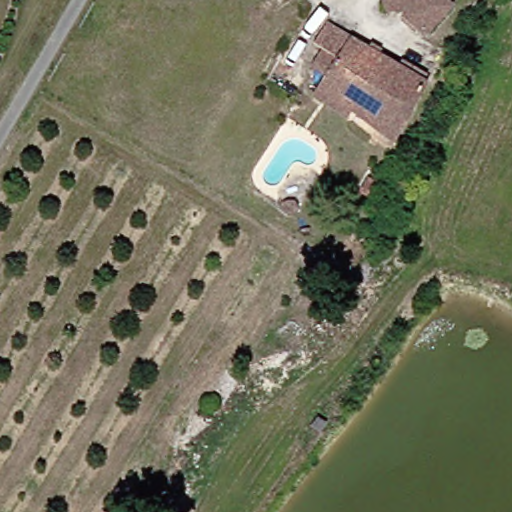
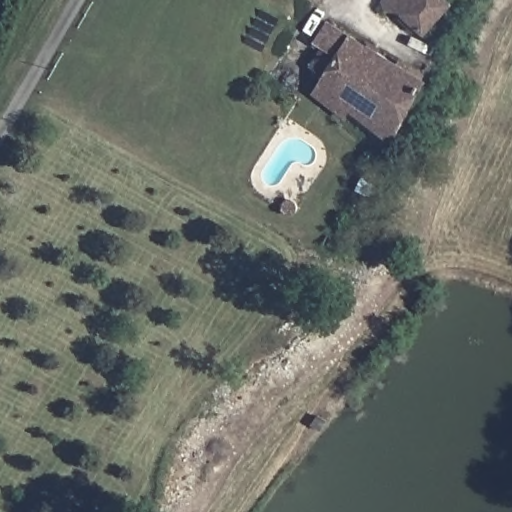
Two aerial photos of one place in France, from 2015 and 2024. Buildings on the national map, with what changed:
unchanged [(392,18),(380,9),(388,0),(447,0),(451,3),(416,38),(392,18)]
unchanged [(314,101),(326,82),(321,77),(332,55),(313,44),(328,18),(428,78),(398,133),(355,107),(348,121),(314,101)]

